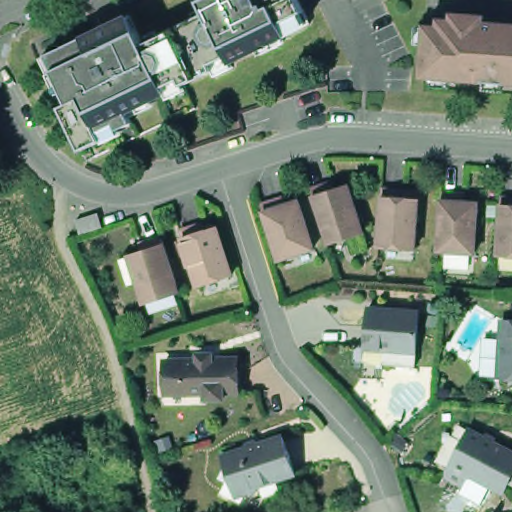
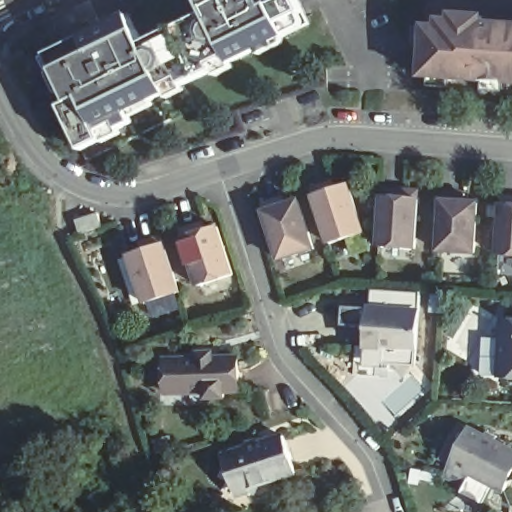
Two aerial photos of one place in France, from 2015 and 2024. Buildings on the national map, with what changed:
unchanged [(281,37),(125,112),(132,127),(80,153),(52,96),(60,88),(41,53),(122,10),(133,31),(204,14),(195,0),(287,0),(293,16),(275,25),(281,37)]
unchanged [(419,74),(425,13),(512,19),(512,83),(419,74)]
unchanged [(327,243),(307,194),(347,178),(360,228),(327,243)]
unchanged [(372,241),(376,189),(415,196),(405,247),(372,241)]
unchanged [(254,208),(291,193),(315,247),(273,259),(254,208)]
unchanged [(433,249),(435,193),(475,199),(470,250),(433,249)]
unchanged [(490,254),(497,199),(512,201),(512,256),(490,254)]
unchanged [(199,280),(178,231),(217,218),(232,272),(199,280)]
unchanged [(140,298),(127,248),(161,239),(172,285),(140,298)]
unchanged [(352,344),(354,305),(420,312),(408,348),(352,344)]
unchanged [(496,379),(498,317),(512,317),(512,379),(496,379)]
unchanged [(155,391),(155,353),(239,356),(239,392),(155,391)]
unchanged [(468,474),(460,488),(434,468),(460,426),(512,452),(512,474),(502,493),(468,474)]
unchanged [(227,494),(211,455),(282,434),(292,475),(227,494)]

